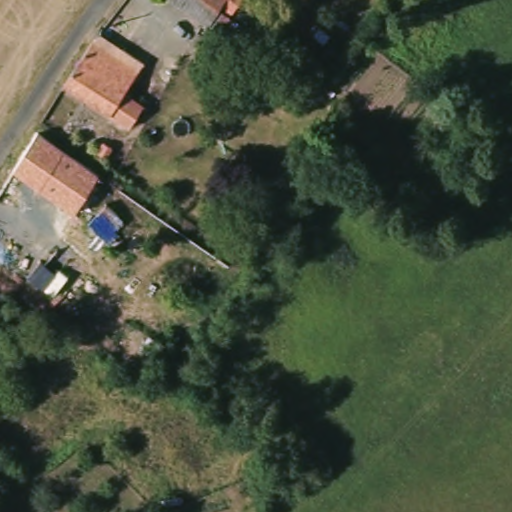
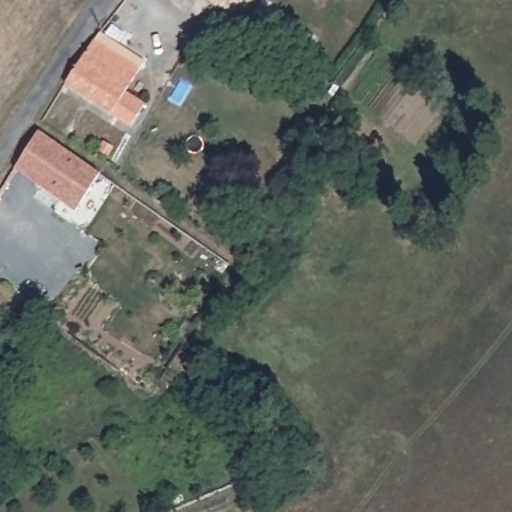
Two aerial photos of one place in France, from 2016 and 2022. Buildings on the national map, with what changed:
unchanged [(171,0),(249,0),(236,19),(227,31),(224,35),(171,0)]
unchanged [(144,106),(128,131),(71,91),(101,45),(106,37),(145,64),(141,71),(126,94),(144,106)]
unchanged [(100,174),(74,214),(14,175),(40,132),(100,174)]

